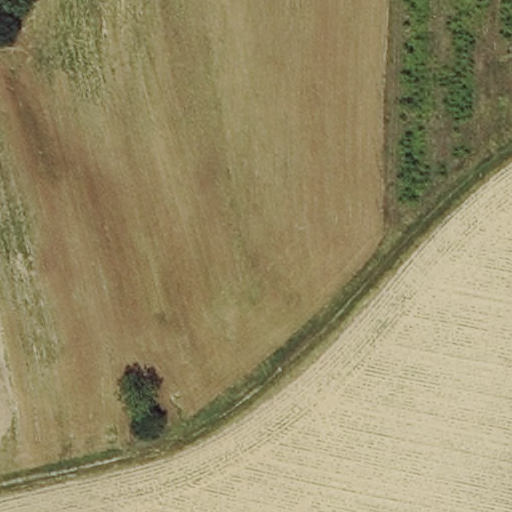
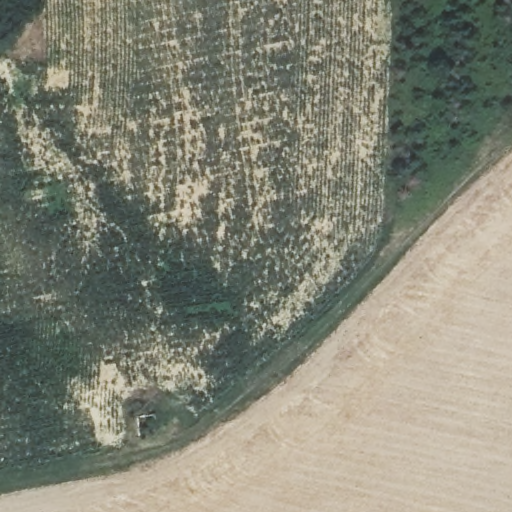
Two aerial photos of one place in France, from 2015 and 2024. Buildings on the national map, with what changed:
unchanged [(137,445),(133,415),(161,410),(164,431),(137,445)]

